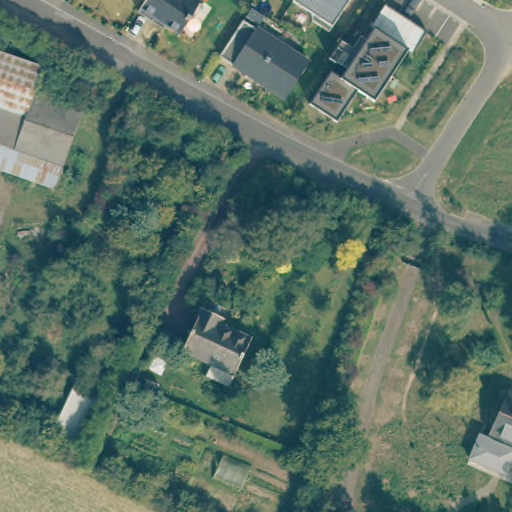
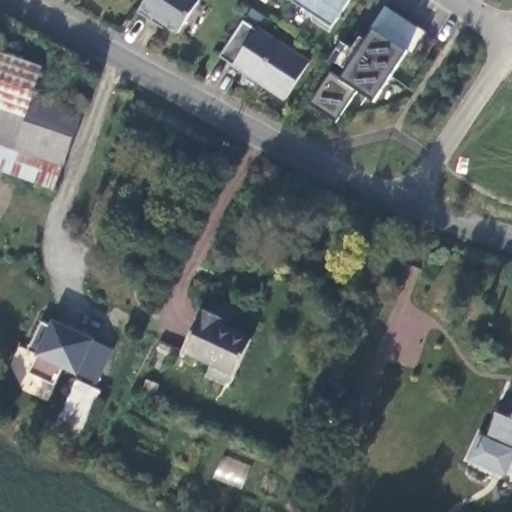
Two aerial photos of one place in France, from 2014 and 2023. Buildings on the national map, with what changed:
unchanged [(179,34),(155,18),(152,22),(138,13),(147,0),(198,0),(200,1),(179,34)]
unchanged [(292,0),(295,0),(294,1),(292,0)]
unchanged [(295,0),(352,0),(330,33),(313,22),(312,15),(294,3),(294,1),(295,0)]
unchanged [(310,105),(332,73),(342,79),(374,30),(372,28),(387,5),(428,33),(413,55),(409,52),(376,103),(359,91),(339,123),(310,105)]
unchanged [(257,31),(258,30),(309,64),(285,101),(242,73),(243,71),(235,66),(234,68),(220,58),(240,27),(244,21),(257,31)]
unchanged [(0,107),(0,51),(40,65),(32,91),(45,96),(38,120),(0,107)]
unchanged [(64,190),(56,188),(19,176),(38,120),(45,96),(45,97),(82,110),(74,133),(64,166),(70,168),(64,190)]
unchanged [(19,176),(0,170),(0,107),(38,120),(19,176)]
unchanged [(204,370),(212,354),(185,342),(203,300),(222,309),(219,316),(250,330),(234,364),(227,379),(204,370)]
new [(95,339),(114,350),(99,384),(80,375),(64,369),(55,385),(29,373),(37,355),(28,351),(41,322),(50,327),(55,321),(95,339)]
unchanged [(100,393),(72,449),(49,438),(78,381),(100,393)]
unchanged [(487,434),(502,394),(512,398),(512,445),(487,434)]
new [(512,450),(512,468),(508,477),(469,461),(480,435),(512,450)]

